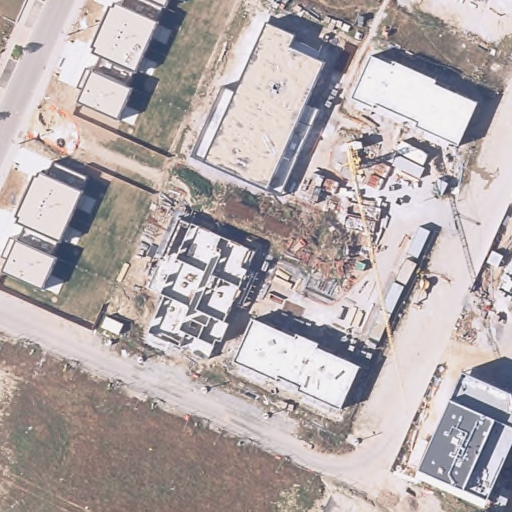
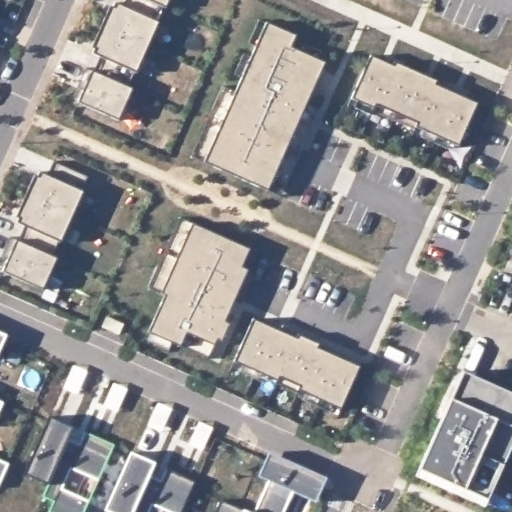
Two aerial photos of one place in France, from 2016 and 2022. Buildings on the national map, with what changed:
unchanged [(101,55),(95,51),(97,46),(94,44),(110,6),(113,7),(115,4),(124,7),(128,0),(167,0),(164,7),(158,22),(136,70),(128,87),(131,89),(119,117),(80,101),(91,72),(96,74),(101,55)]
unchanged [(192,154),(223,86),(236,92),(242,78),(234,76),(259,20),(265,22),(298,36),(291,49),(325,62),(307,102),(319,110),(278,195),(266,187),(205,161),(192,154)]
unchanged [(393,66),(394,62),(435,80),(434,83),(475,102),(457,144),(416,127),(417,123),(375,105),(373,107),(352,99),(371,57),(393,66)]
unchanged [(16,240),(20,242),(28,225),(18,220),(34,174),(39,175),(40,174),(83,192),(60,239),(49,256),(56,258),(43,287),(3,269),(16,240)]
unchanged [(247,248),(254,252),(247,269),(225,321),(228,323),(222,340),(217,337),(214,342),(208,355),(183,340),(181,345),(150,331),(165,293),(162,292),(149,287),(179,217),(193,222),(247,248)]
unchanged [(254,320),(296,337),(298,333),(319,343),(318,347),(358,366),(341,407),(299,389),(300,386),(278,377),(277,378),(235,360),(254,320)]
new [(0,333),(7,336),(0,352),(0,333)]
unchanged [(452,397),(463,371),(512,392),(512,443),(488,498),(464,487),(421,468),(452,397)]
new [(0,412),(0,401),(4,403),(0,412)]
new [(25,474),(51,417),(73,426),(66,439),(81,445),(87,431),(115,443),(98,482),(71,470),(63,489),(90,501),(85,512),(50,512),(49,512),(54,502),(44,497),(48,482),(25,474)]
new [(105,511),(131,451),(156,463),(150,477),(161,481),(167,469),(194,482),(180,512),(168,512),(153,506),(150,512),(107,512),(105,511)]
new [(269,479),(259,476),(271,452),(327,478),(316,503),(292,492),(283,512),(254,512),(269,479)]
new [(0,460),(10,464),(0,484),(0,460)]
new [(222,499),(243,508),(251,512),(215,512),(222,499)]

